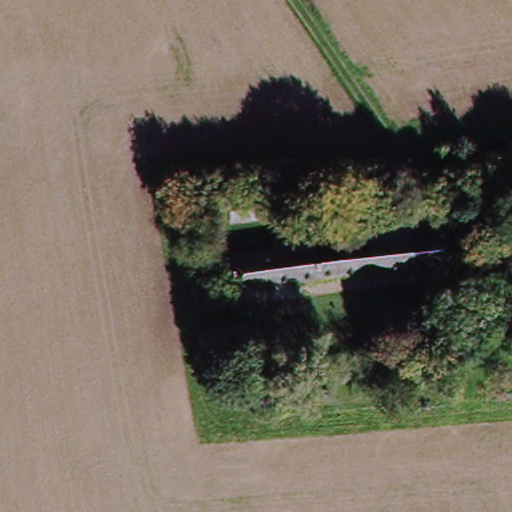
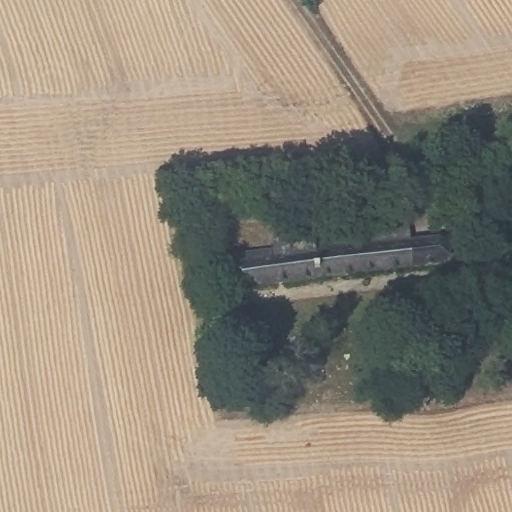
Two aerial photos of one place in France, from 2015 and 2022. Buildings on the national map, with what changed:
unchanged [(247,204),(248,207),(249,222),(218,224),(215,211),(181,214),(180,206),(180,205),(200,204),(215,202),(247,200),(247,204)]
unchanged [(229,269),(242,265),(274,260),(272,257),(370,245),(372,251),(447,245),(450,265),(247,291),(234,294),(229,269)]

